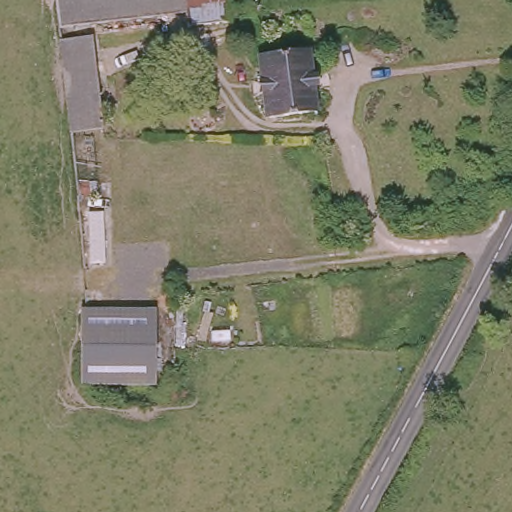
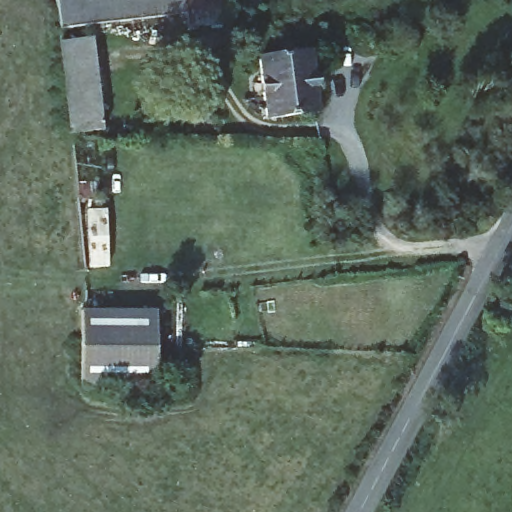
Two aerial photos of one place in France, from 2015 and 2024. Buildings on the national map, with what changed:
unchanged [(230,9),(225,10),(225,22),(204,24),(202,11),(57,29),(56,20),(54,0),(229,0),(230,9)]
unchanged [(251,6),(252,16),(242,17),(242,7),(251,6)]
unchanged [(69,135),(58,41),(90,37),(100,130),(69,135)]
unchanged [(308,54),(315,112),(265,117),(259,60),(308,54)]
unchanged [(155,310),(154,388),(79,387),(81,310),(155,310)]

